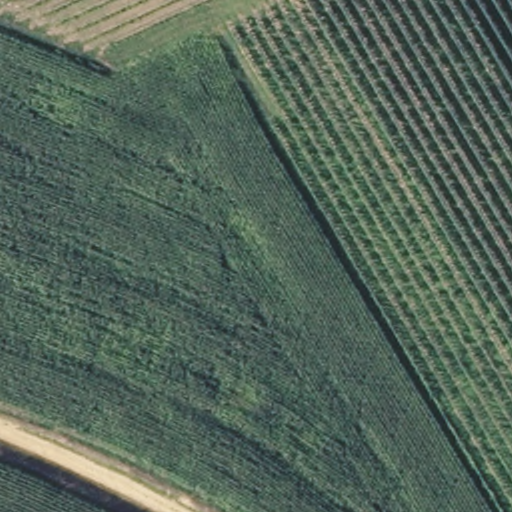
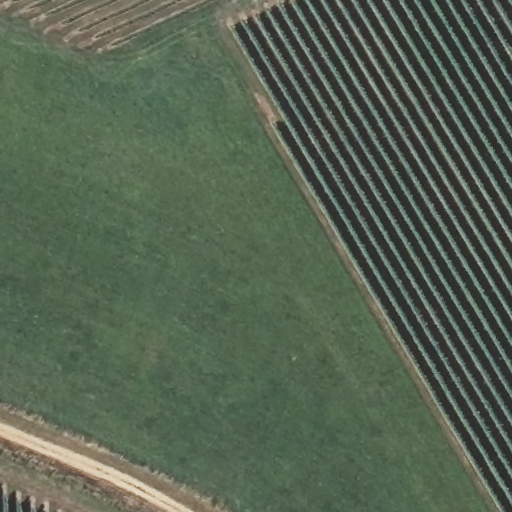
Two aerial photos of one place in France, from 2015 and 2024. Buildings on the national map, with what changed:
[]

